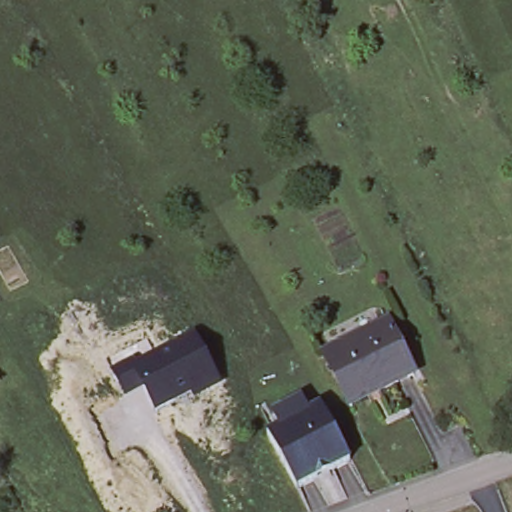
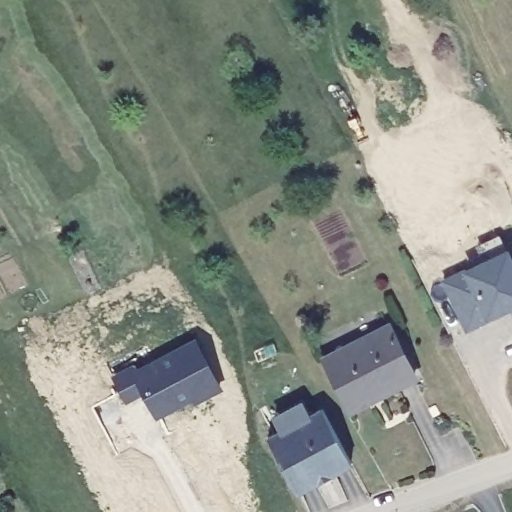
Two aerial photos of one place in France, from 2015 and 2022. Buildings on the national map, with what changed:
new [(466,323),(447,280),(487,261),(479,244),(498,235),(506,253),(512,250),(512,302),(466,323)]
unchanged [(393,322),(420,372),(355,404),(330,353),(393,322)]
unchanged [(114,373),(137,363),(139,367),(195,336),(224,387),(195,402),(192,397),(155,417),(145,391),(127,401),(114,373)]
unchanged [(274,417),(300,403),(307,416),(322,408),(350,463),(297,493),(267,438),(282,431),(274,417)]

